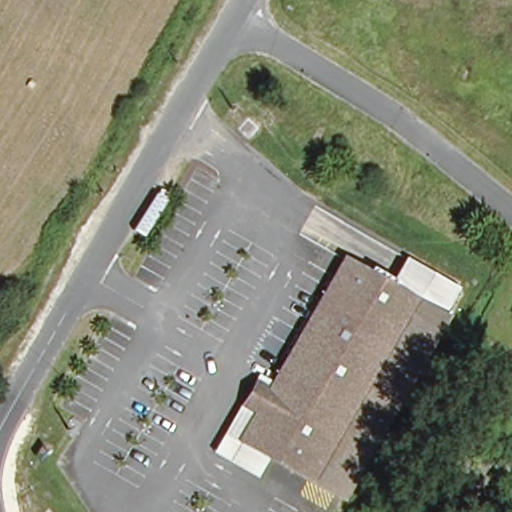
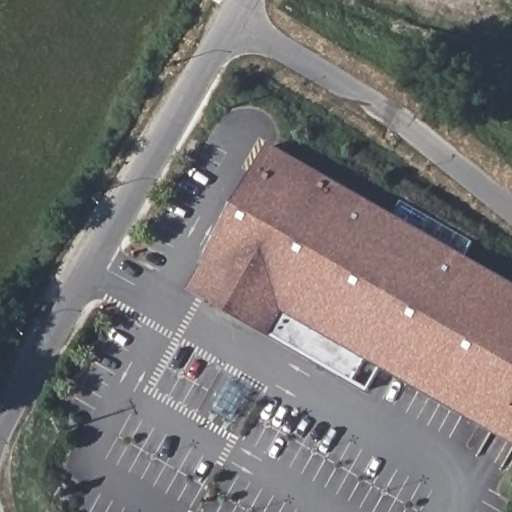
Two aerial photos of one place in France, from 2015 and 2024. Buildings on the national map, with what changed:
new [(512,283),(512,440),(368,360),(355,380),(191,288),(274,145),(512,283)]
demolished [(312,490),(217,438),(251,376),(266,384),(339,260),(370,277),(384,250),(429,274),(312,490)]
demolished [(429,274),(460,291),(448,313),(454,317),(346,505),(312,490),(429,274)]

